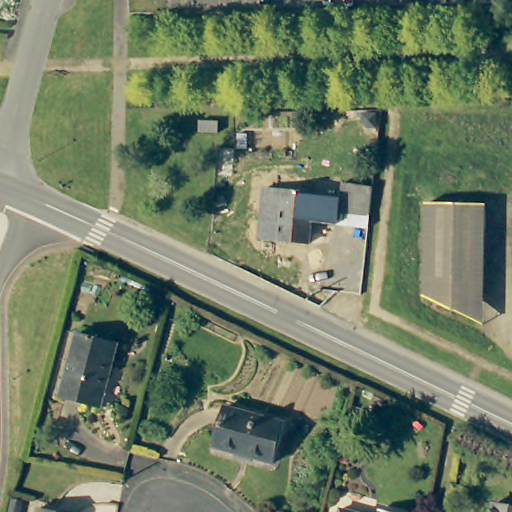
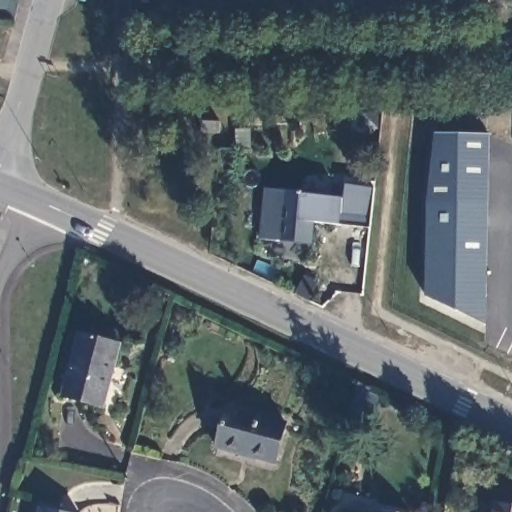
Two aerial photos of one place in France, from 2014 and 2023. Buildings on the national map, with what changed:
new [(434,135),(488,134),(487,202),(444,201),(429,201),(434,135)]
unchanged [(311,222),(308,243),(259,238),(264,188),(314,194),(314,195),(340,198),(343,182),(372,187),(368,228),(311,222)]
unchanged [(457,304),(422,287),(419,286),(429,201),(444,201),(487,202),(488,288),(486,294),(481,315),(457,304)]
unchanged [(116,344),(96,405),(61,395),(77,333),(116,344)]
unchanged [(271,459),(231,449),(212,445),(223,405),(241,411),(281,422),(271,459)]
unchanged [(512,503),(512,512),(492,512),(495,499),(512,503)]
unchanged [(74,512),(37,512),(39,503),(74,512)]

